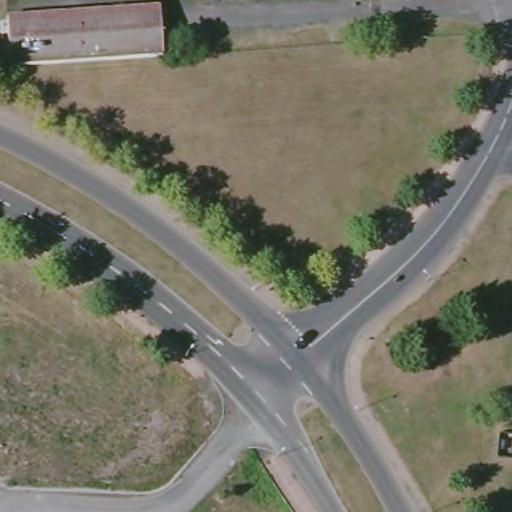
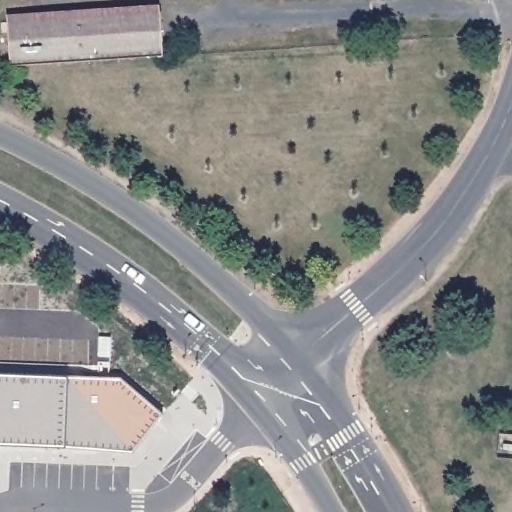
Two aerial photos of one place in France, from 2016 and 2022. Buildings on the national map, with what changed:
unchanged [(8,16),(160,6),(163,55),(12,66),(8,16)]
new [(163,414),(131,451),(0,446),(0,374),(120,378),(163,414)]

